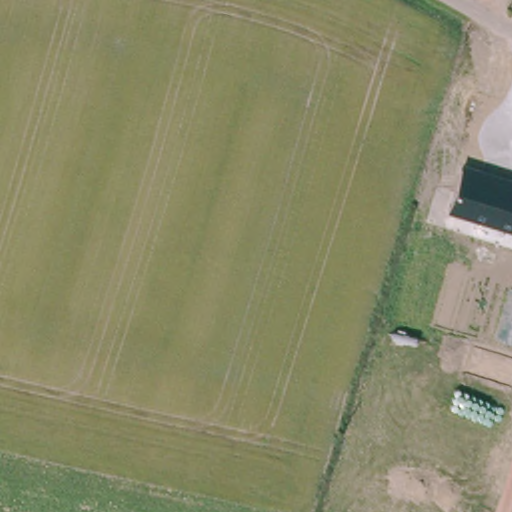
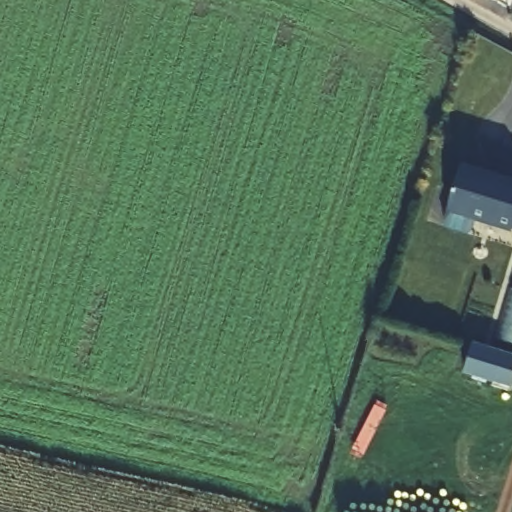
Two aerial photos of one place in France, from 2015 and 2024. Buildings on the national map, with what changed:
unchanged [(512,176),(512,230),(447,211),(463,163),(512,176)]
new [(512,353),(512,385),(466,372),(475,341),(512,353)]

